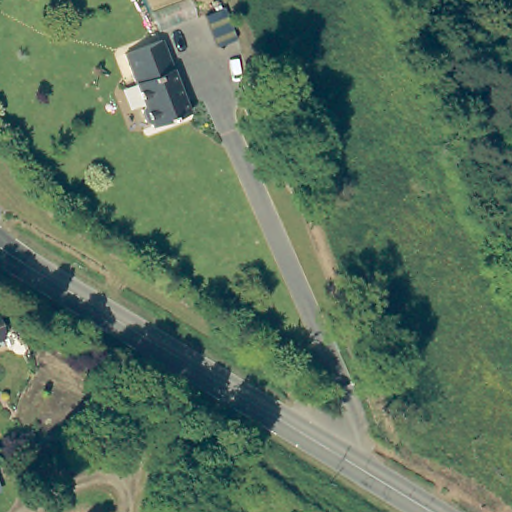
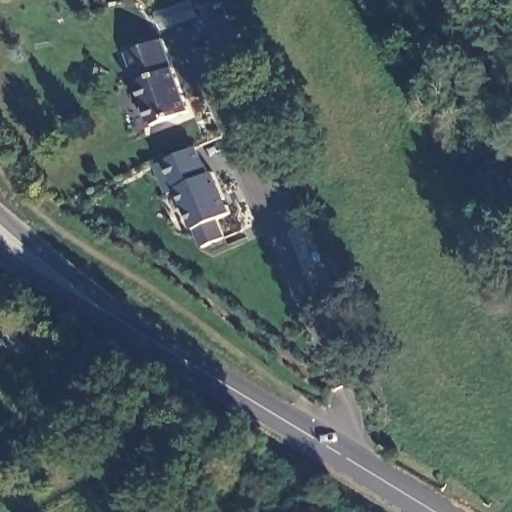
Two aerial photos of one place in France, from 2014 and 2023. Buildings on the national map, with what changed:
unchanged [(211,20),(229,12),(235,29),(238,38),(220,45),(211,20)]
unchanged [(164,37),(191,110),(154,124),(154,121),(152,119),(149,119),(148,119),(144,106),(147,104),(128,51),(164,37)]
new [(174,188),(166,192),(154,166),(162,164),(197,149),(208,173),(212,171),(231,212),(218,219),(228,236),(201,246),(174,188)]

